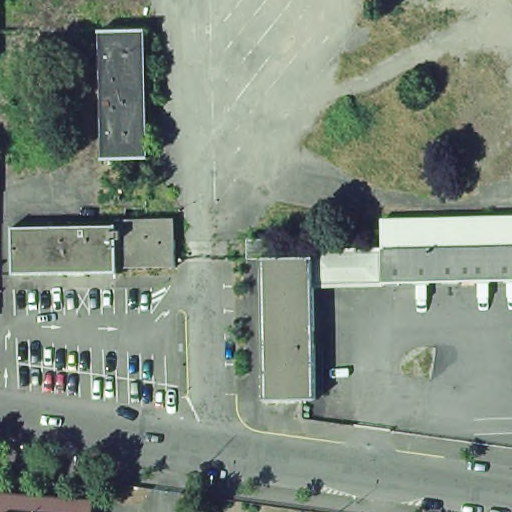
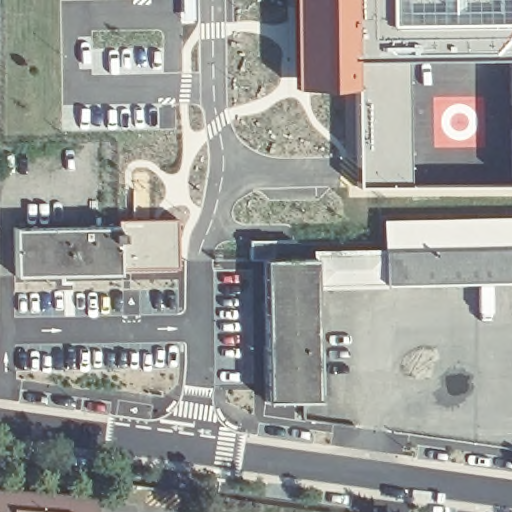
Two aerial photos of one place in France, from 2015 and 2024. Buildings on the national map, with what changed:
new [(292,0),(512,0),(512,181),(503,181),(502,50),(400,54),(401,179),(351,179),(346,71),(294,72),(292,0)]
demolished [(96,36),(142,35),(142,36),(144,162),(145,162),(145,163),(98,165),(98,163),(99,163),(96,37),(96,36)]
unchanged [(379,250),(379,241),(379,237),(378,220),(483,217),(512,217),(512,279),(380,282),(380,284),(377,284),(362,284),(310,285),(309,257),(309,251),(357,250),(374,250),(379,250)]
unchanged [(112,225),(112,219),(171,218),(172,260),(172,267),(167,267),(167,266),(113,268),(112,225)]
unchanged [(11,275),(9,275),(8,227),(112,225),(113,268),(114,273),(112,273),(112,272),(11,274),(11,275)]
unchanged [(244,258),(244,239),(267,239),(267,242),(267,258),(309,257),(310,285),(312,400),(261,400),(258,259),(258,258),(244,258)]
unchanged [(90,512),(0,512),(0,497),(91,505),(90,512)]

